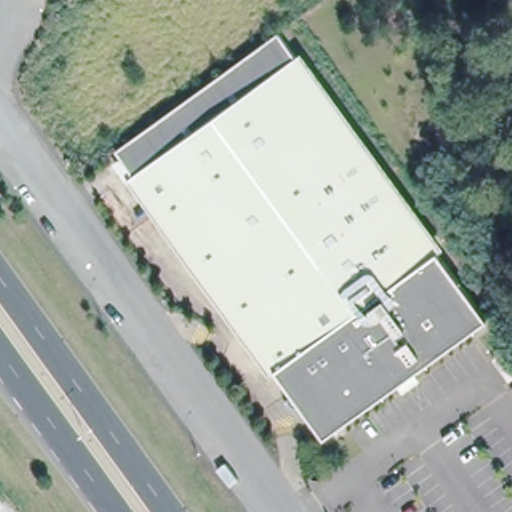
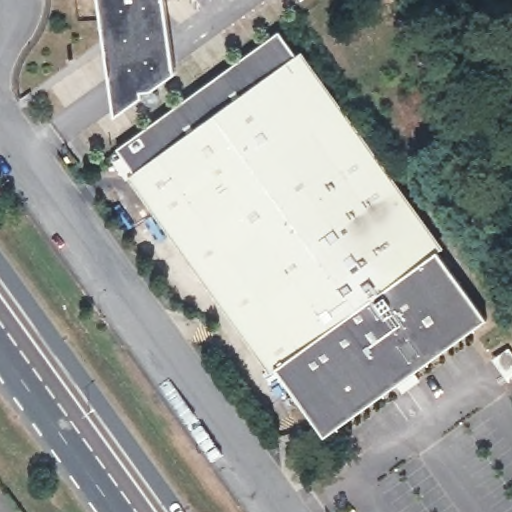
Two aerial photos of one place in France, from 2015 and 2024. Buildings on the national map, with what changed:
new [(176,65),(120,104),(107,0),(167,0),(176,65)]
unchanged [(117,145),(280,28),(389,177),(226,295),(117,145)]
unchanged [(389,177),(489,315),(326,432),(226,295),(389,177)]

